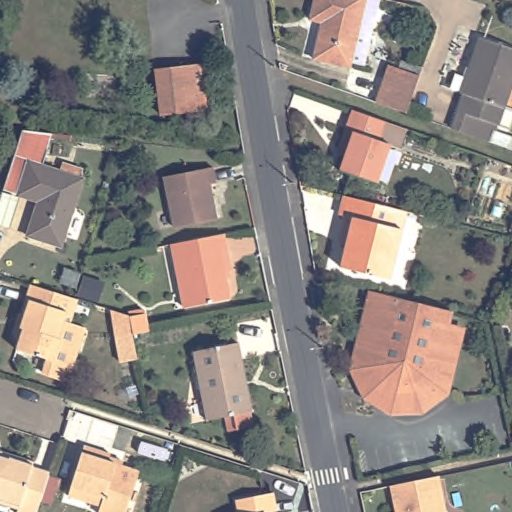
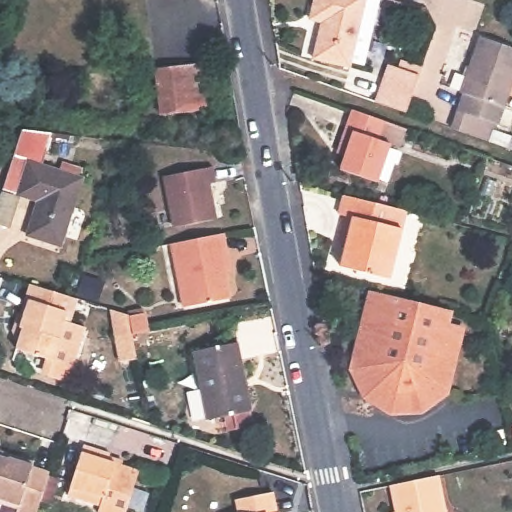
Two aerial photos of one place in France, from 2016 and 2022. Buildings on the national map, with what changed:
unchanged [(308,59),(316,23),(305,20),(310,0),(361,0),(345,68),(308,59)]
unchanged [(361,0),(375,0),(358,71),(345,68),(361,0)]
unchanged [(495,142),(457,128),(469,94),(465,93),(485,37),(512,47),(512,95),(497,136),(512,141),(512,148),(495,142)]
unchanged [(156,68),(202,62),(209,110),(162,115),(156,68)]
unchanged [(393,69),(424,80),(410,117),(380,106),(393,69)]
unchanged [(346,173),(352,155),(345,153),(358,115),(402,130),(412,133),(405,153),(396,150),(383,186),(346,173)]
unchanged [(53,133),(42,165),(83,178),(61,246),(27,235),(39,201),(2,190),(22,129),(53,133)]
unchanged [(217,171),(221,188),(214,189),(220,224),(180,232),(170,181),(217,171)]
unchanged [(17,199),(9,226),(0,223),(0,200),(2,194),(17,199)]
unchanged [(358,217),(344,213),(348,195),(411,211),(395,277),(345,267),(358,217)]
unchanged [(177,248),(228,238),(235,275),(229,276),(235,303),(189,312),(177,248)]
unchanged [(42,355),(6,344),(13,323),(10,322),(19,295),(15,294),(20,279),(54,290),(64,293),(67,294),(60,317),(75,322),(58,377),(37,371),(42,355)]
unchanged [(387,397),(383,396),(380,395),(377,393),(374,391),(371,389),(368,386),(365,383),(362,380),(360,376),(358,372),(357,368),(356,363),(360,350),(356,349),(371,290),(451,310),(447,325),(462,329),(446,393),(440,401),(431,407),(421,411),(412,413),(402,414),(392,413),(388,412),(385,411),(384,410),(387,397)]
unchanged [(132,334),(116,338),(110,309),(129,315),(128,312),(142,310),(144,313),(147,331),(132,334)]
unchanged [(238,341),(252,410),(250,410),(254,425),(229,430),(226,415),(207,419),(193,351),(238,341)]
unchanged [(98,512),(100,506),(69,495),(85,445),(110,454),(108,461),(140,471),(126,512),(98,512)]
unchanged [(33,466),(50,471),(37,512),(16,512),(19,505),(0,499),(0,456),(9,458),(10,454),(35,461),(33,466)]
unchanged [(390,485),(438,476),(446,512),(393,512),(395,511),(390,485)]
unchanged [(268,494),(273,493),(277,512),(240,512),(237,500),(268,494)]

